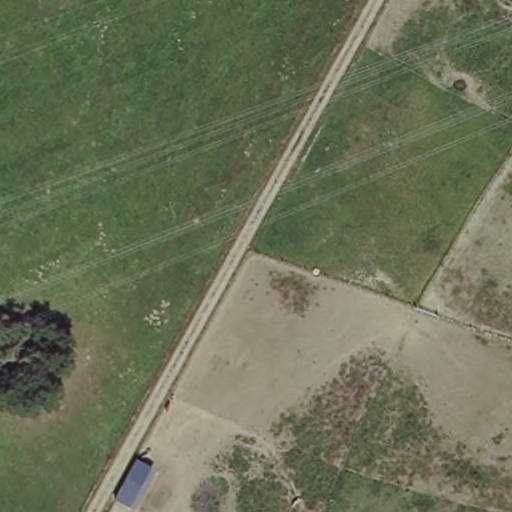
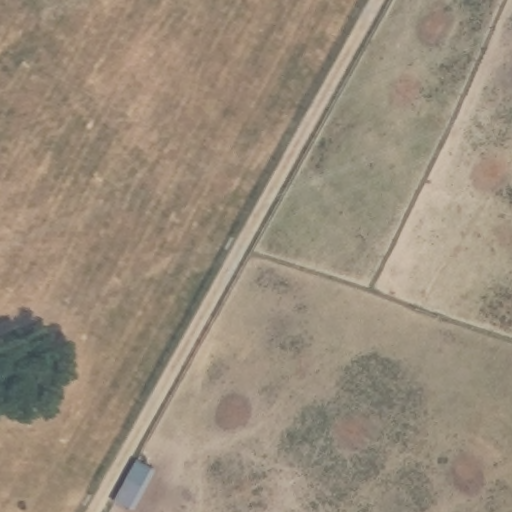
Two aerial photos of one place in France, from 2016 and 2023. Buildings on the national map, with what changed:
unchanged [(151,471),(130,511),(116,504),(138,464),(151,471)]

